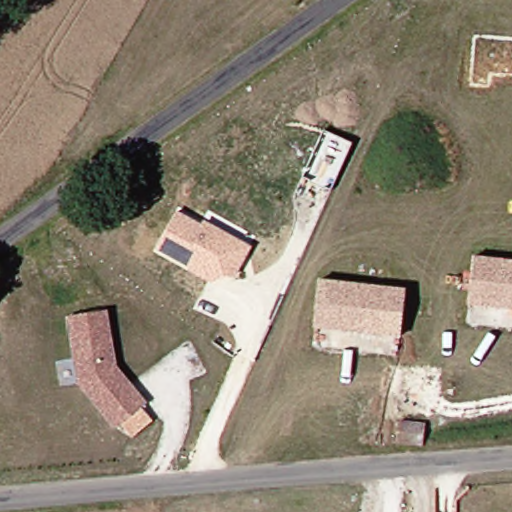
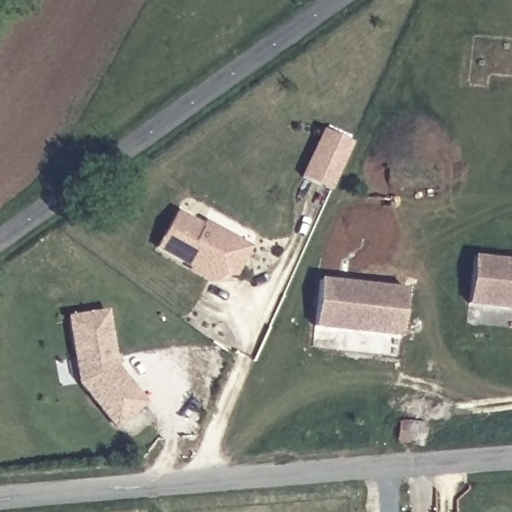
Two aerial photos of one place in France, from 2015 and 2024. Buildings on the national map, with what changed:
new [(320,129),(350,143),(328,190),(299,177),(320,129)]
unchanged [(236,275),(212,281),(158,246),(179,210),(254,245),(236,275)]
unchanged [(473,258),(512,261),(512,308),(469,304),(473,258)]
unchanged [(405,288),(401,335),(318,323),(321,279),(405,288)]
unchanged [(114,316),(114,372),(137,414),(102,432),(75,382),(76,316),(114,316)]
unchanged [(413,410),(438,414),(435,434),(410,430),(413,410)]

